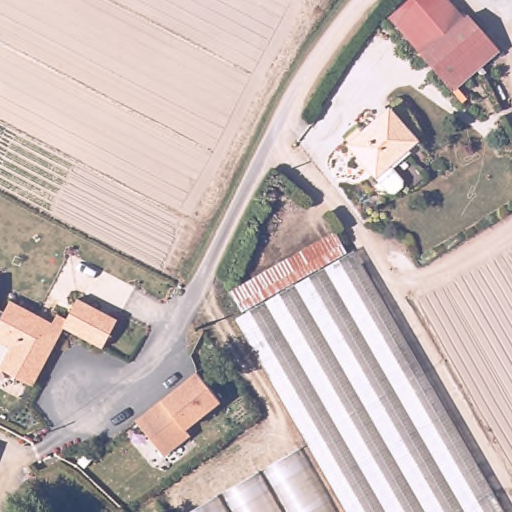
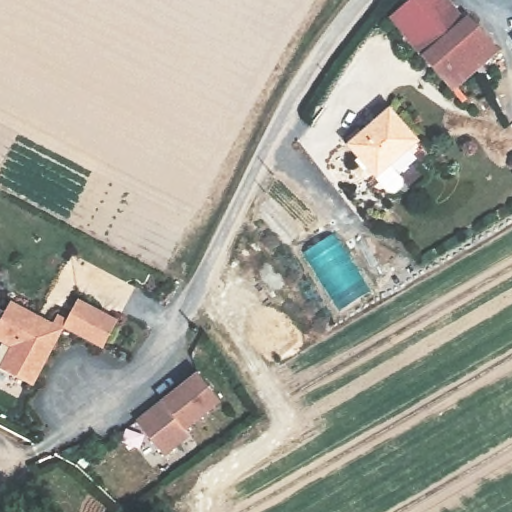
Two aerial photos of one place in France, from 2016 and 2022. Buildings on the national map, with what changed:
unchanged [(423,56),(389,18),(410,0),(449,0),(465,18),(468,15),(501,50),(454,91),(423,56)]
unchanged [(384,116),(411,148),(369,184),(340,151),(384,116)]
demolished [(353,252),(359,248),(510,512),(188,512),(184,504),(260,462),(264,468),(312,441),(242,316),(249,312),(239,287),(279,265),(339,230),(353,252)]
unchanged [(103,345),(86,337),(69,329),(64,326),(58,339),(34,384),(33,383),(2,367),(1,366),(12,346),(0,340),(0,319),(1,319),(11,300),(34,311),(34,312),(31,318),(36,321),(34,325),(44,330),(46,326),(51,329),(55,322),(59,314),(68,318),(79,297),(100,308),(119,318),(104,346),(103,345)]
unchanged [(222,403),(188,429),(193,436),(187,440),(183,435),(158,405),(168,397),(166,395),(197,373),(222,403)]
unchanged [(139,421),(158,405),(183,435),(187,440),(165,456),(139,421)]
unchanged [(1,453),(0,456),(0,453),(1,453)]

